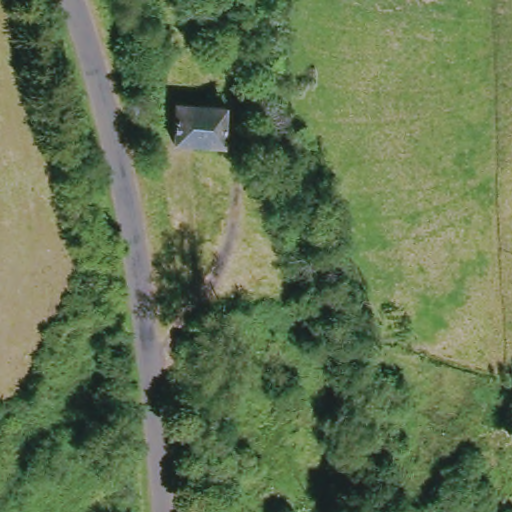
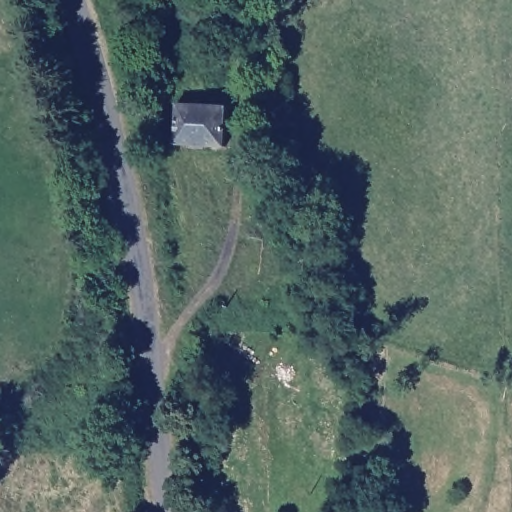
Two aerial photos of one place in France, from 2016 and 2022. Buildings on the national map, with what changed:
unchanged [(167,140),(170,102),(220,103),(216,144),(211,143),(167,140)]

